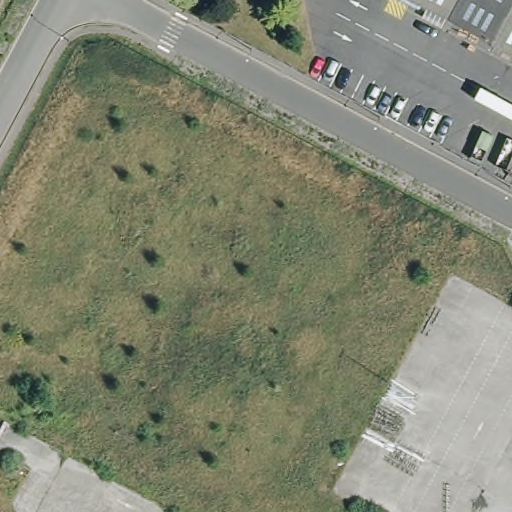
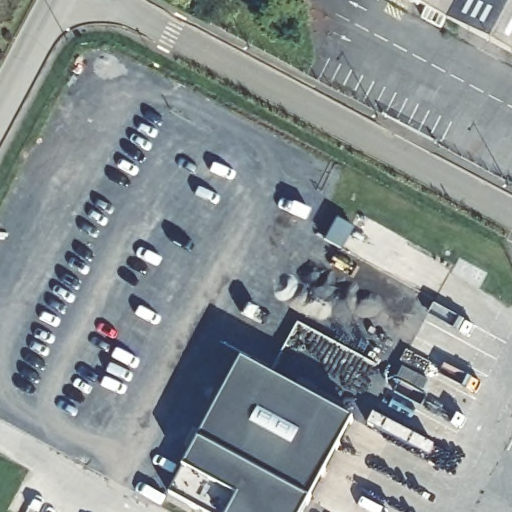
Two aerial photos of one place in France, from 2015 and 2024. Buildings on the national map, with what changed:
unchanged [(398,0),(512,0),(512,61),(398,0)]
new [(336,216),(353,225),(341,246),(325,237),(336,216)]
new [(353,420),(304,512),(206,512),(170,492),(185,466),(242,361),(353,420)]

